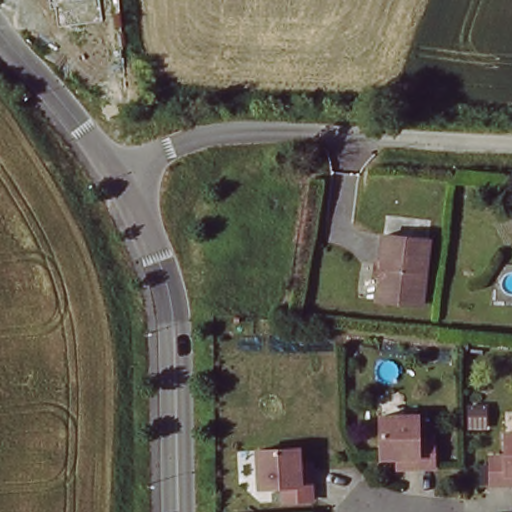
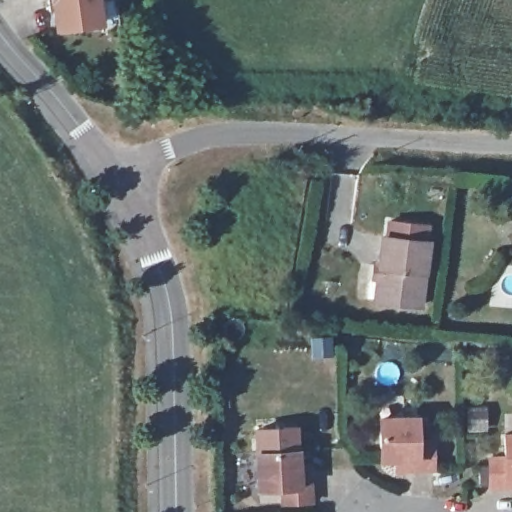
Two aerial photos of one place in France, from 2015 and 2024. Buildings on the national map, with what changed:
new [(51,0),(100,0),(104,23),(56,30),(51,0)]
unchanged [(428,239),(422,304),(377,299),(380,277),(375,276),(375,264),(380,264),(384,235),(428,239)]
unchanged [(390,449),(375,449),(375,407),(412,406),(412,430),(427,430),(428,459),(397,459),(390,459),(390,449)]
unchanged [(485,481),(485,452),(500,452),(500,428),(512,428),(512,481),(485,481)]
unchanged [(277,497),(277,482),(253,483),(251,446),(293,444),(294,459),(304,458),(304,465),(306,496),(277,497)]

